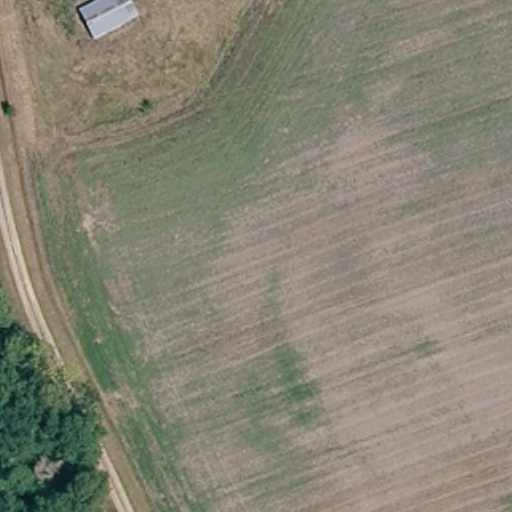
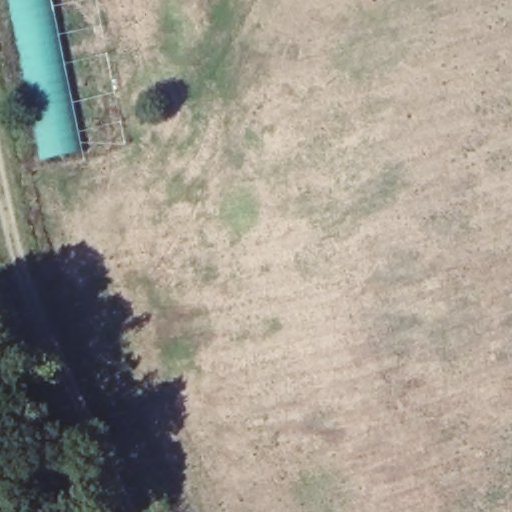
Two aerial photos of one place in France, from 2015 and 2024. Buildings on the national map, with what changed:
new [(41,161),(8,0),(52,0),(84,151),(41,161)]
demolished [(135,0),(142,15),(102,38),(82,10),(100,0),(135,0)]

